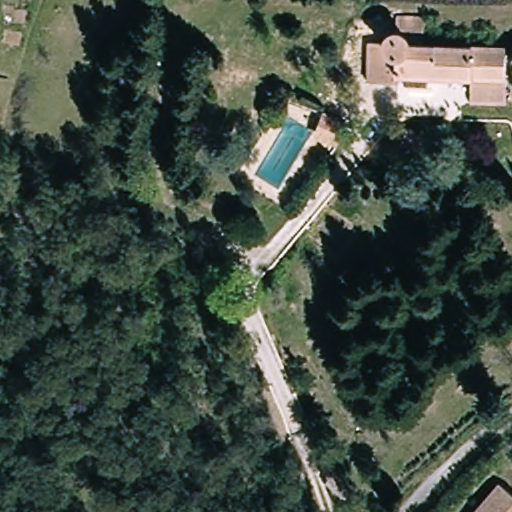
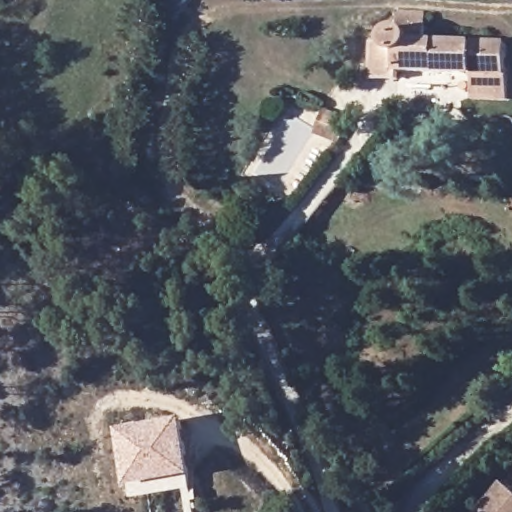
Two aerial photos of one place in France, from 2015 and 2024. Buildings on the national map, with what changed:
unchanged [(423,18),(423,40),(505,42),(509,100),(474,100),(472,73),(397,72),(397,81),(370,81),(370,46),(384,46),(382,40),(383,35),(386,30),(390,28),(393,27),(398,27),(398,17),(423,18)]
unchanged [(328,109),(348,117),(341,140),(320,132),(328,109)]
new [(116,429),(183,420),(192,478),(125,487),(116,429)]
unchanged [(512,490),(512,512),(477,512),(505,484),(512,490)]

